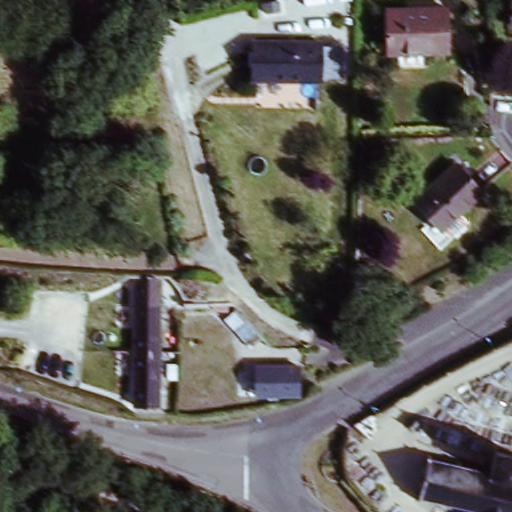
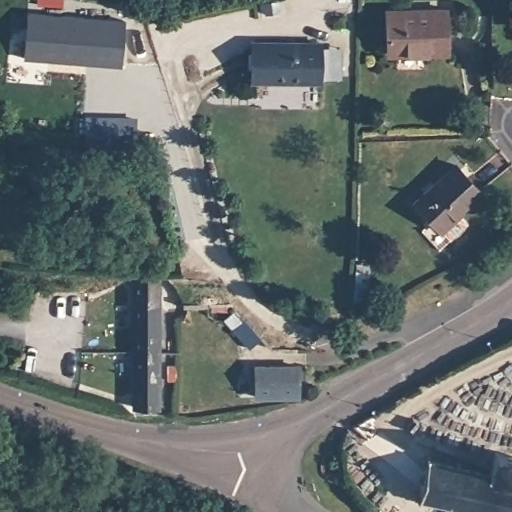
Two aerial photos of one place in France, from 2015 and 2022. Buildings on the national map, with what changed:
unchanged [(446,42),(386,45),(384,9),(444,6),(446,42)]
new [(24,59),(29,14),(125,21),(122,68),(24,59)]
unchanged [(263,79),(261,50),(323,44),(340,42),(343,68),(324,70),(325,73),(263,79)]
new [(73,121),(122,125),(120,162),(71,159),(73,121)]
unchanged [(441,222),(419,197),(459,164),(480,190),(441,222)]
unchanged [(157,293),(157,385),(133,385),(134,292),(157,293)]
unchanged [(294,394),(258,393),(258,371),(294,371),(294,394)]
unchanged [(475,505),(419,484),(434,443),(489,463),(496,445),(511,450),(512,450),(512,512),(472,512),(475,505)]

